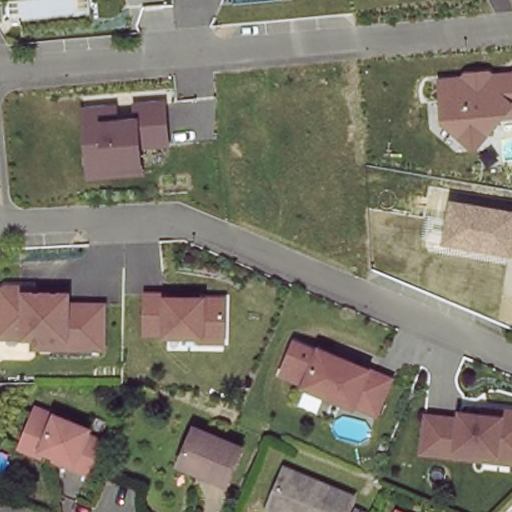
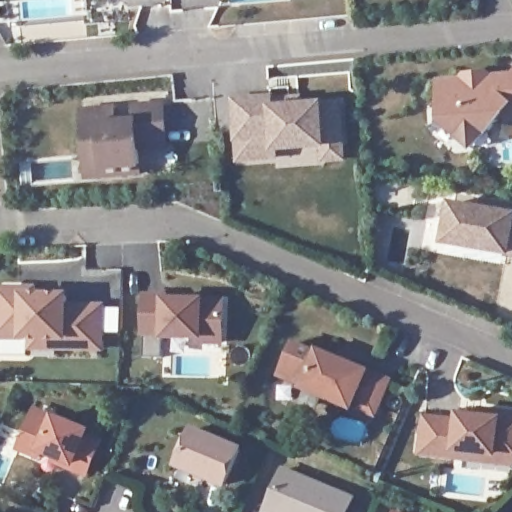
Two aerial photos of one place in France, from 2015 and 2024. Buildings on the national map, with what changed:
unchanged [(441,122),(435,80),(461,79),(461,72),(491,70),(491,75),(512,73),(512,118),(504,119),(475,153),(441,122)]
new [(272,97),(272,100),(300,99),(301,105),(340,102),(344,159),(325,160),(324,145),(276,149),(276,156),(238,159),(235,99),(272,97)]
unchanged [(79,106),(115,103),(116,115),(132,114),(132,104),(165,101),(169,145),(146,147),(147,177),(87,181),(79,106)]
unchanged [(512,214),(512,253),(446,242),(453,204),(512,214)]
unchanged [(0,336),(0,291),(5,287),(20,287),(34,288),(34,293),(67,294),(67,305),(103,305),(103,347),(65,347),(33,346),(33,336),(0,336)]
unchanged [(167,295),(167,298),(224,300),(223,341),(201,341),(201,336),(165,335),(166,333),(146,333),(146,295),(167,295)]
unchanged [(341,360),(344,355),(353,358),(351,363),(391,380),(377,414),(355,405),(354,407),(305,387),(320,350),(341,360)]
unchanged [(56,455),(43,450),(40,455),(21,448),(33,415),(36,408),(58,417),(90,430),(87,437),(98,442),(86,472),(71,466),(55,460),(56,455)]
unchanged [(452,456),(418,453),(422,416),(455,420),(456,414),(478,416),(479,409),(496,411),(512,413),(512,462),(511,463),(452,456)]
unchanged [(179,457),(191,426),(238,445),(225,481),(194,469),(177,462),(179,457)]
unchanged [(283,470),(353,497),(347,512),(268,512),(266,511),(269,504),(283,470)]
unchanged [(390,512),(385,512),(386,510),(390,512)]

